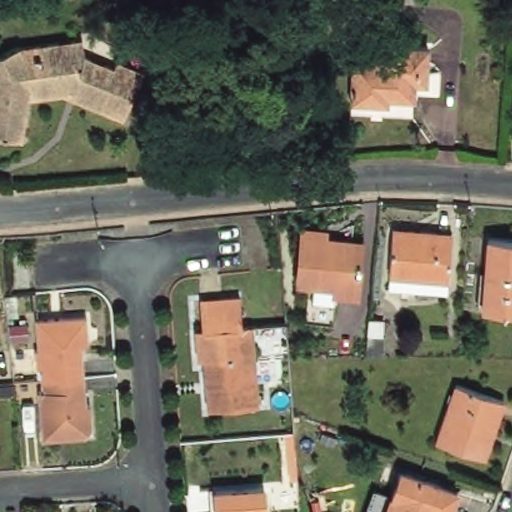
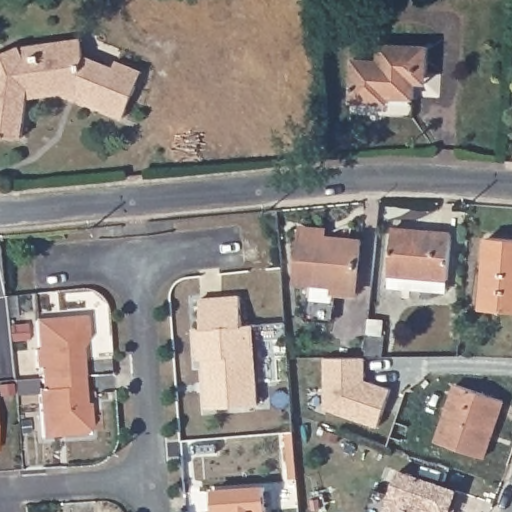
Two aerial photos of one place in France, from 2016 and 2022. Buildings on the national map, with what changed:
unchanged [(14,50),(76,41),(78,56),(81,57),(84,89),(0,95),(0,56),(14,50)]
unchanged [(420,45),(423,70),(412,72),(409,72),(410,100),(385,102),(385,107),(349,110),(346,65),(371,64),(370,49),(413,45),(420,45)]
unchanged [(110,68),(112,61),(138,71),(131,88),(117,121),(94,110),(96,103),(85,98),(84,89),(81,57),(110,68)]
unchanged [(84,89),(85,98),(74,93),(20,101),(15,141),(0,139),(0,95),(84,89)]
unchanged [(451,226),(447,285),(386,281),(391,222),(451,226)]
unchanged [(320,229),(320,237),(357,240),(353,290),(330,288),(330,281),(295,278),(299,227),(320,229)]
unchanged [(512,315),(482,313),(487,242),(512,244),(512,315)]
unchanged [(195,362),(194,331),(200,330),(197,301),(237,298),(240,327),(250,326),(257,405),(207,409),(203,361),(195,362)]
unchanged [(40,369),(36,369),(35,352),(39,351),(36,323),(87,319),(90,340),(82,349),(85,378),(41,381),(40,369)]
new [(330,346),(332,346),(372,349),(370,374),(375,374),(392,387),(378,426),(325,407),(330,346)]
unchanged [(42,393),(41,381),(85,378),(86,404),(90,404),(92,435),(41,439),(38,393),(42,393)]
unchanged [(500,402),(480,459),(432,442),(452,385),(500,402)]
unchanged [(446,512),(383,512),(397,474),(453,493),(446,512)]
unchanged [(260,490),(261,512),(212,512),(211,494),(260,490)]

